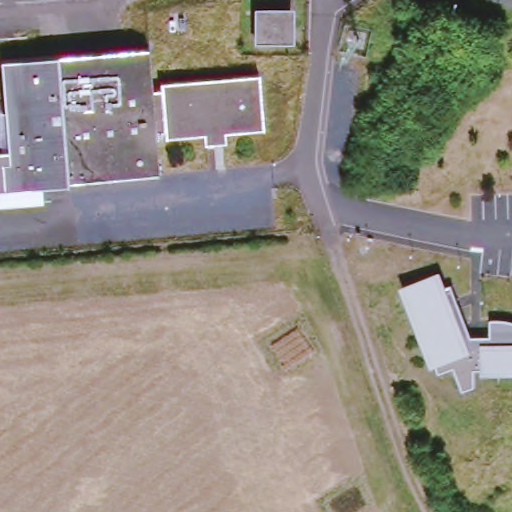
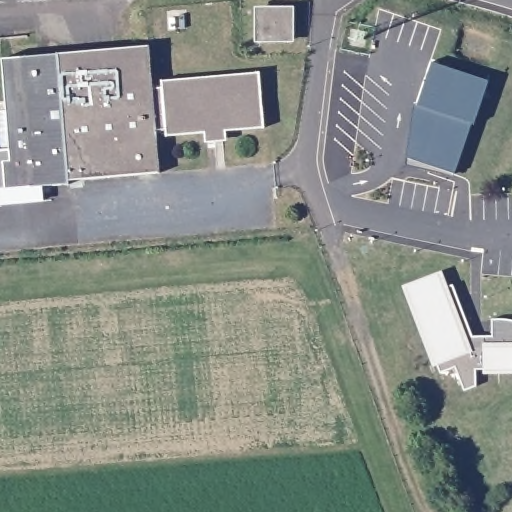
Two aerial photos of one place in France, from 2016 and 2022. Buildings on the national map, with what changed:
unchanged [(253,7),(288,4),(291,31),(258,34),(253,7)]
unchanged [(65,180),(2,187),(0,169),(0,159),(5,159),(0,109),(0,53),(4,53),(49,50),(141,43),(146,85),(159,84),(158,76),(253,69),(261,122),(166,133),(163,125),(149,127),(156,168),(65,177),(65,180)]
new [(419,105),(434,62),(489,81),(456,174),(412,159),(403,155),(419,105)]
unchanged [(484,377),(484,372),(478,372),(477,389),(464,394),(455,370),(439,376),(436,369),(433,370),(402,289),(443,273),(449,288),(454,286),(474,338),(492,338),(492,321),(508,320),(512,321),(512,377),(484,377)]

